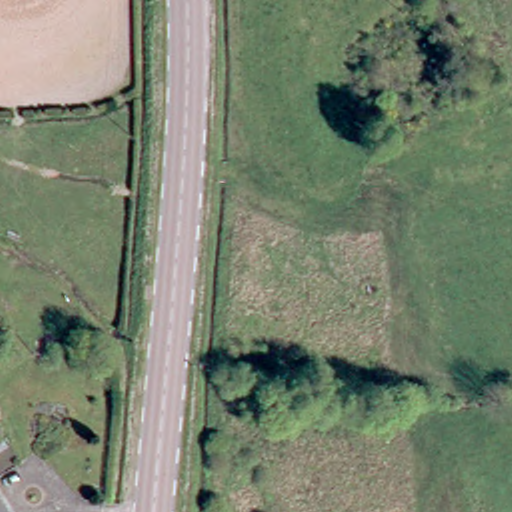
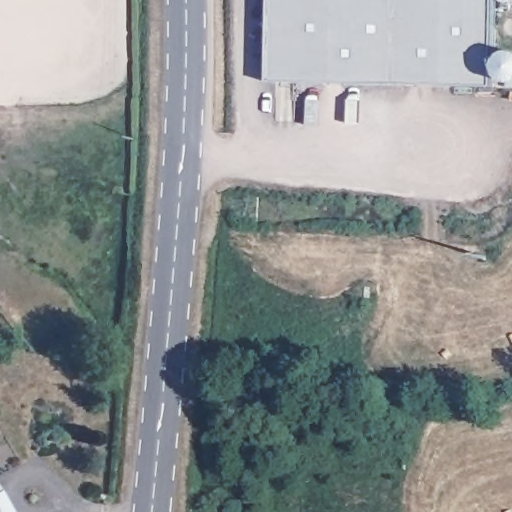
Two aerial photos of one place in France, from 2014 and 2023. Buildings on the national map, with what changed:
new [(494,87),(272,81),(273,0),(496,0),(494,87)]
unchanged [(5,512),(0,512),(0,503),(5,512)]

